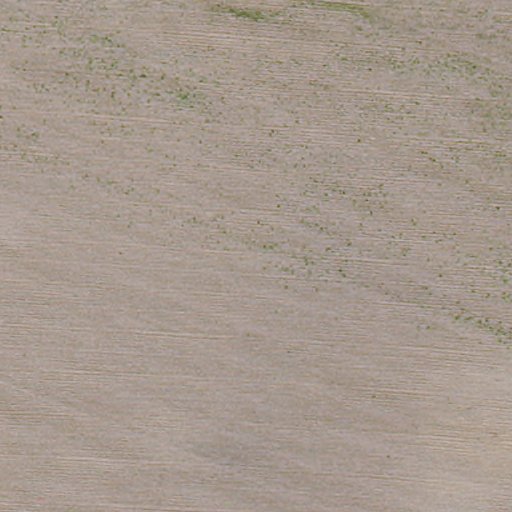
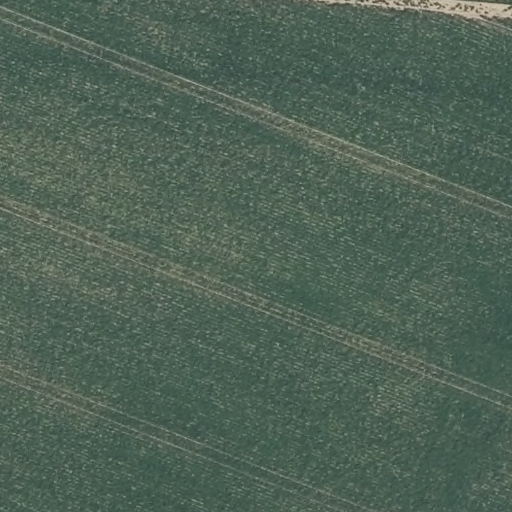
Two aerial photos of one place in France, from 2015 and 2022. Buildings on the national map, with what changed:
[]

